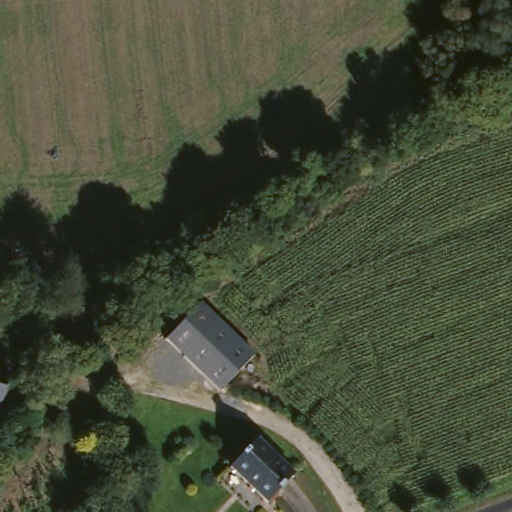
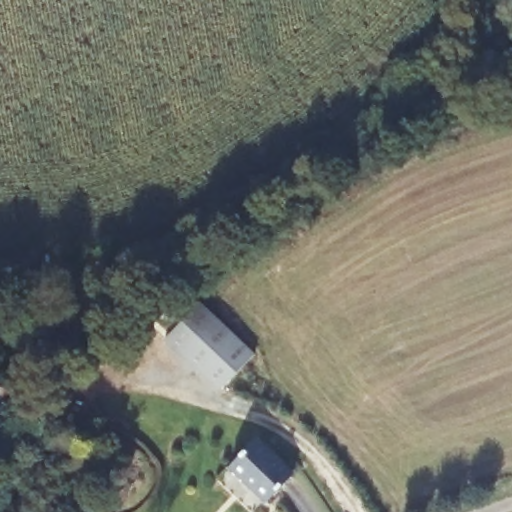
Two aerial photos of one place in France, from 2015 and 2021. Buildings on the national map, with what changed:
unchanged [(255,355),(219,391),(165,338),(201,303),(255,355)]
unchanged [(11,378),(0,411),(0,375),(11,378)]
unchanged [(294,480),(267,508),(229,475),(258,447),(294,480)]

